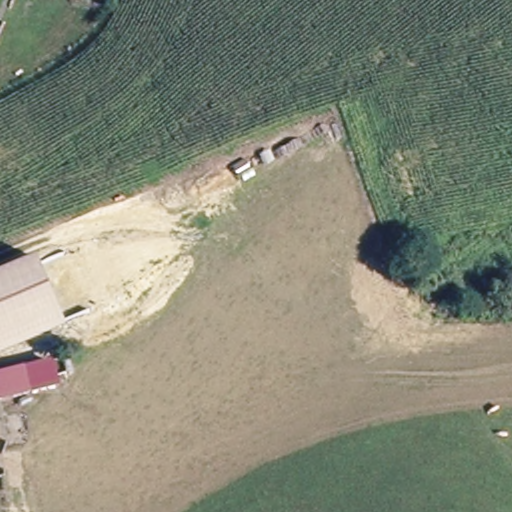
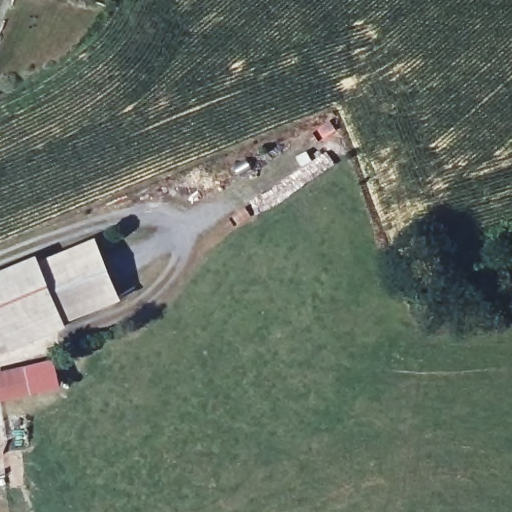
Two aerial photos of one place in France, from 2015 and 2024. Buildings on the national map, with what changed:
new [(96,237),(121,299),(65,323),(64,320),(62,317),(57,303),(41,259),(96,237)]
unchanged [(57,303),(62,317),(64,320),(65,323),(66,329),(40,339),(0,353),(0,274),(41,259),(57,303)]
unchanged [(61,389),(0,403),(0,371),(55,358),(61,389)]

